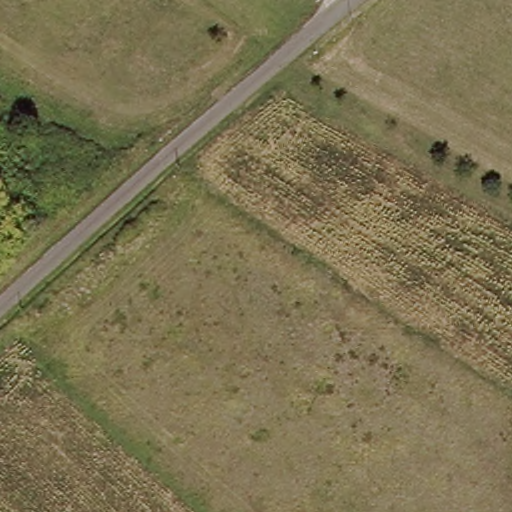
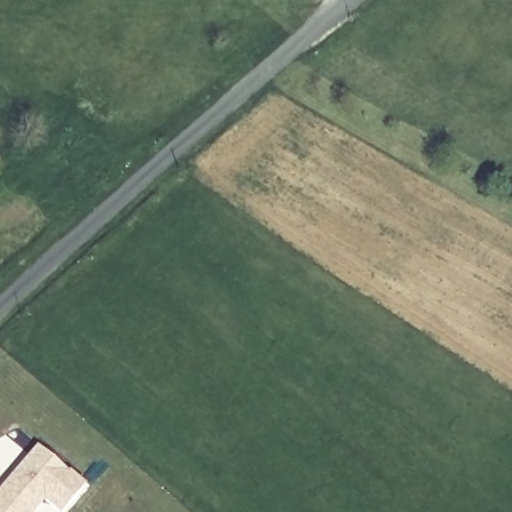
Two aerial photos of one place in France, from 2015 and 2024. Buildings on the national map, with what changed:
new [(84,488),(64,512),(62,512),(46,497),(34,512),(0,512),(0,493),(37,447),(84,488)]

